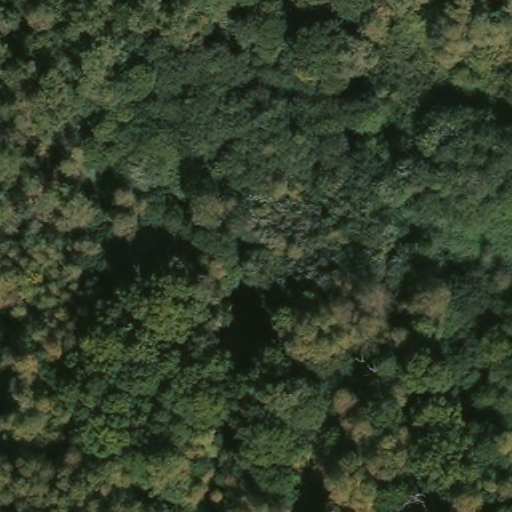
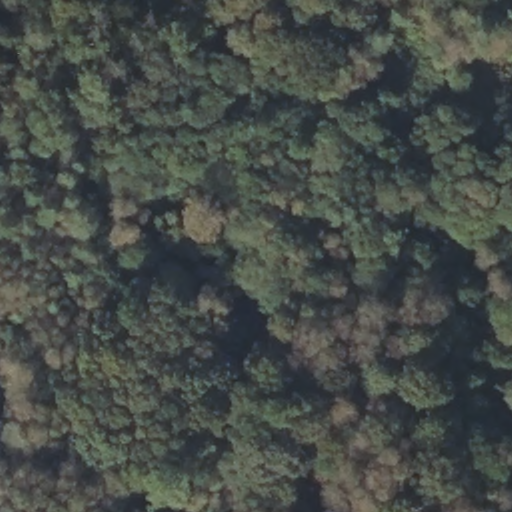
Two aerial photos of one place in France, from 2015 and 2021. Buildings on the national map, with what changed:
[]

